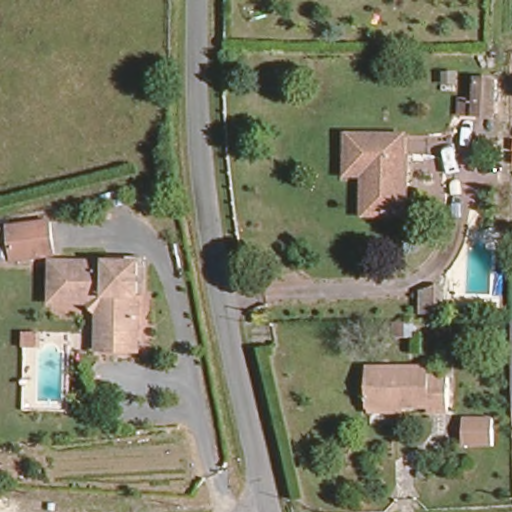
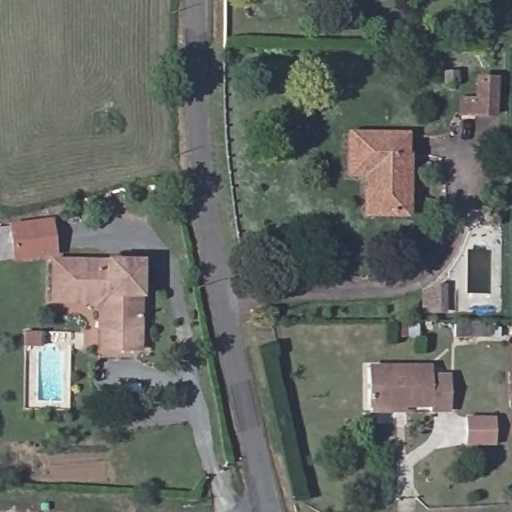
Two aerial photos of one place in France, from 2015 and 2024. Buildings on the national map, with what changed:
unchanged [(467,99),(477,99),(477,76),(497,76),(497,112),(477,112),(462,112),(462,100),(467,99)]
unchanged [(369,215),(369,172),(352,172),(352,137),(402,137),(402,153),(409,154),(409,199),(402,199),(402,214),(369,215)]
unchanged [(12,229),(11,224),(52,219),(56,249),(53,250),(25,253),(14,254),(14,252),(0,254),(0,229),(12,229)]
unchanged [(99,325),(99,308),(90,300),(53,300),(53,260),(140,258),(142,346),(121,347),(100,347),(99,325)]
unchanged [(437,283),(436,311),(422,311),(422,292),(437,283)]
unchanged [(492,320),(492,327),(497,327),(498,337),(453,338),(452,322),(492,320)]
unchanged [(417,324),(417,340),(395,340),(394,325),(417,324)]
unchanged [(430,403),(370,405),(368,367),(430,365),(430,374),(448,373),(449,407),(430,407),(430,403)]
unchanged [(493,419),(494,450),(468,450),(467,420),(493,419)]

